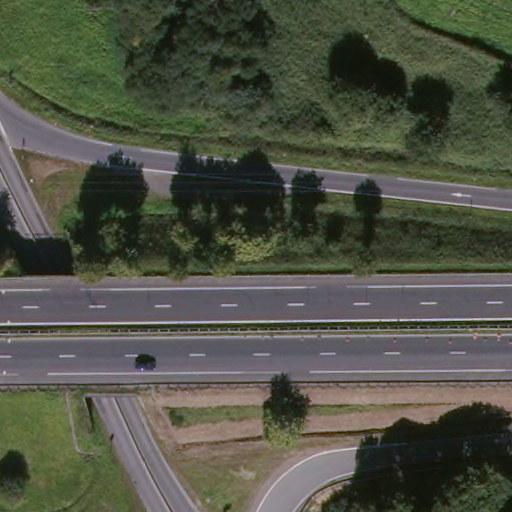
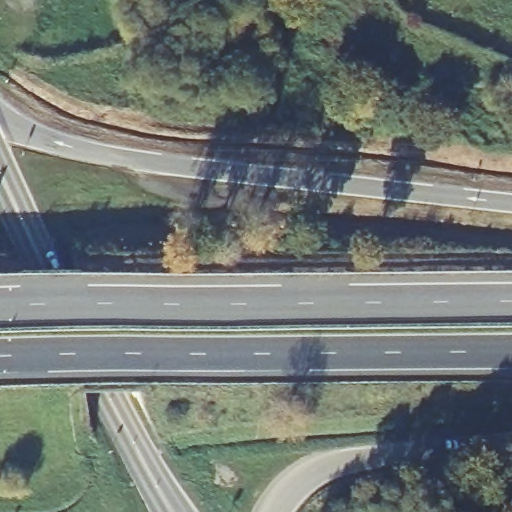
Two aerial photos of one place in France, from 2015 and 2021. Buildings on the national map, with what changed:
[]

